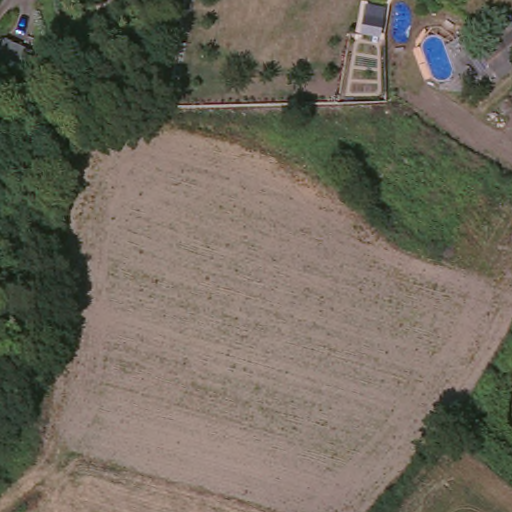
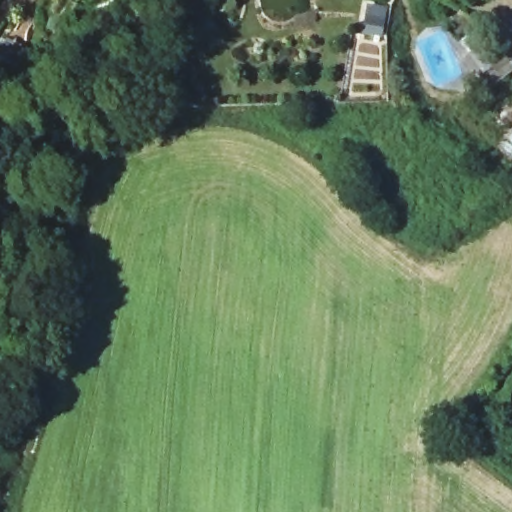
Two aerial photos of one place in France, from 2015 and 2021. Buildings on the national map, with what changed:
unchanged [(355,23),(358,6),(359,0),(376,0),(374,9),(371,26),(355,23)]
unchanged [(512,67),(512,74),(498,84),(480,58),(512,33),(512,58),(508,60),(512,67)]

